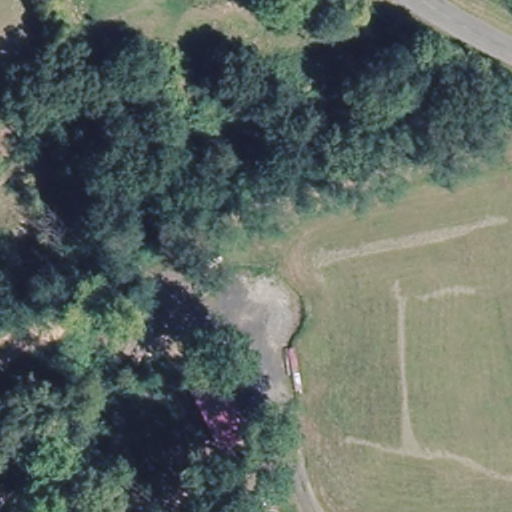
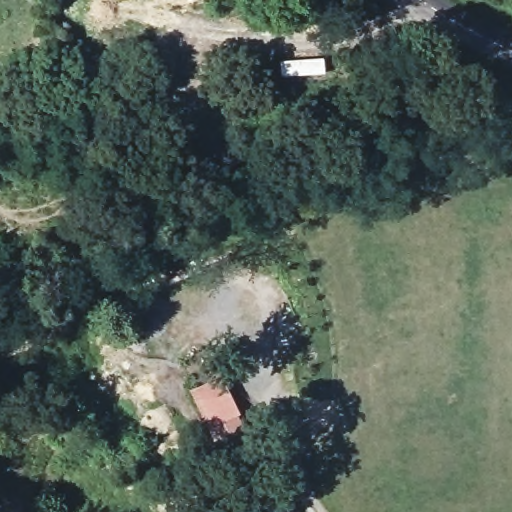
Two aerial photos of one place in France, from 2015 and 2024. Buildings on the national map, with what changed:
new [(189,392),(220,378),(242,426),(238,428),(240,431),(213,443),(189,392)]

